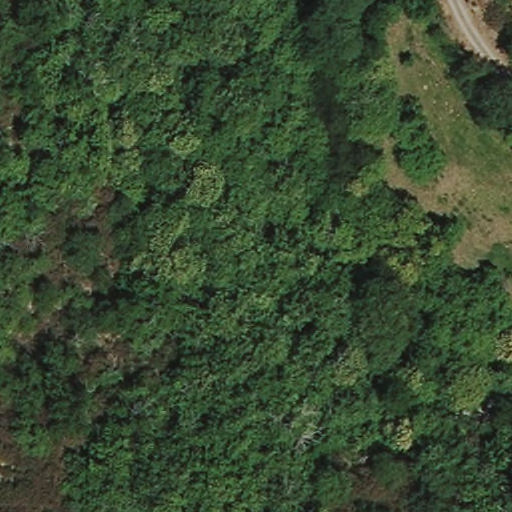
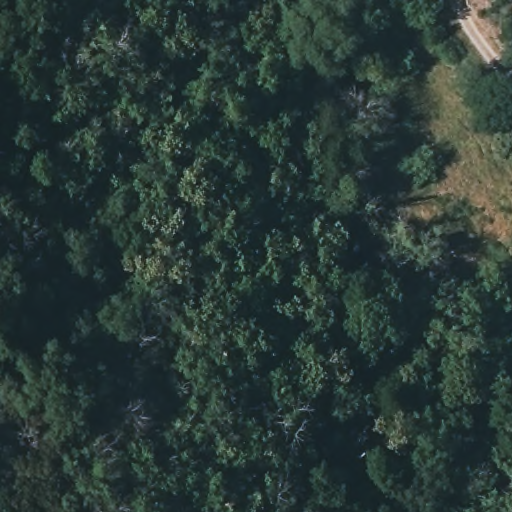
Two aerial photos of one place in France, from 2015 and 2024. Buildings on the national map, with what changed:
unchanged [(435,280),(390,301),(380,280),(422,259),(435,280)]

